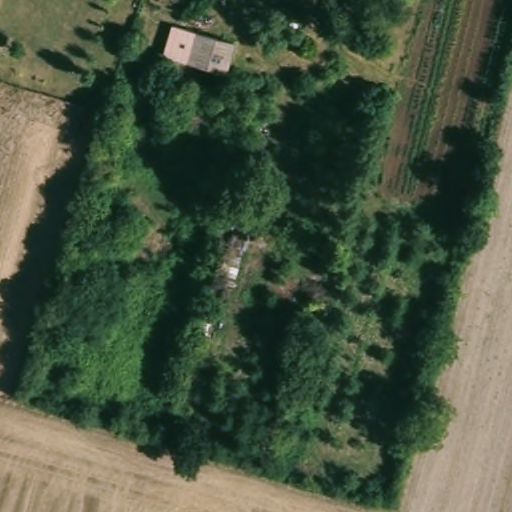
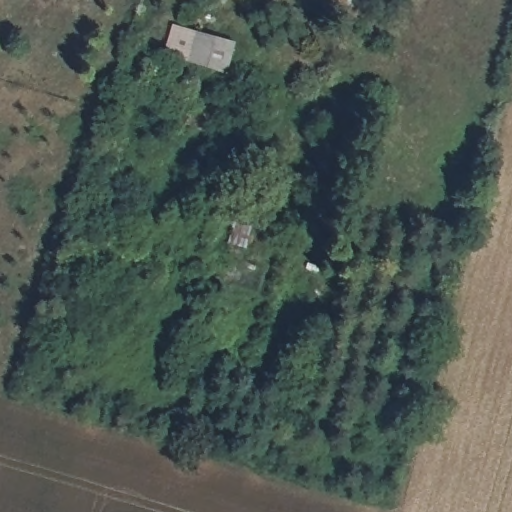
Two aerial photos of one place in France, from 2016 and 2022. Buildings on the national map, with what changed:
unchanged [(160,105),(189,109),(189,104),(212,106),(209,131),(160,125),(160,105)]

